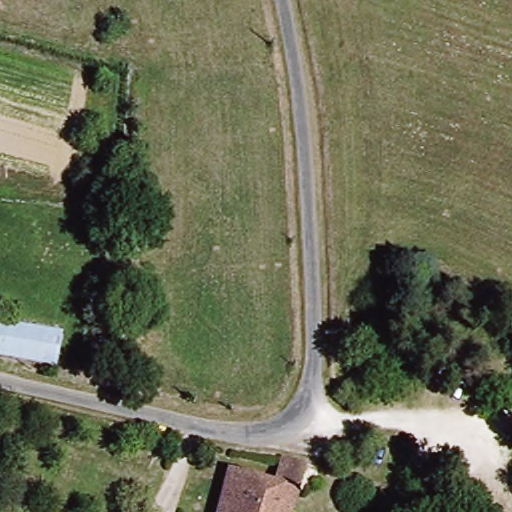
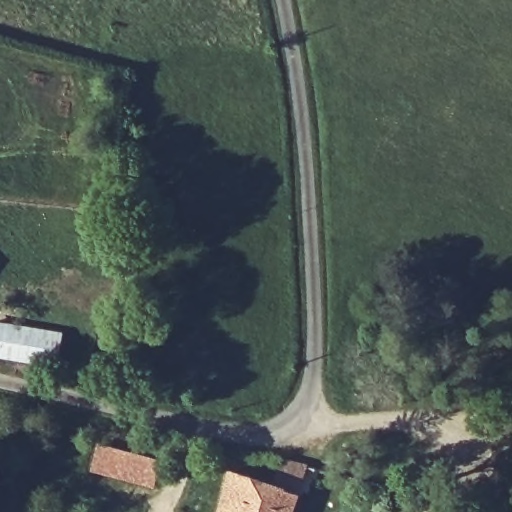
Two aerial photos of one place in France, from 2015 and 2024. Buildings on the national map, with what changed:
unchanged [(0,361),(0,324),(65,335),(56,371),(0,361)]
new [(92,472),(100,444),(163,463),(155,490),(92,472)]
unchanged [(229,472),(271,484),(279,458),(304,463),(294,491),(286,512),(216,512),(229,472)]

